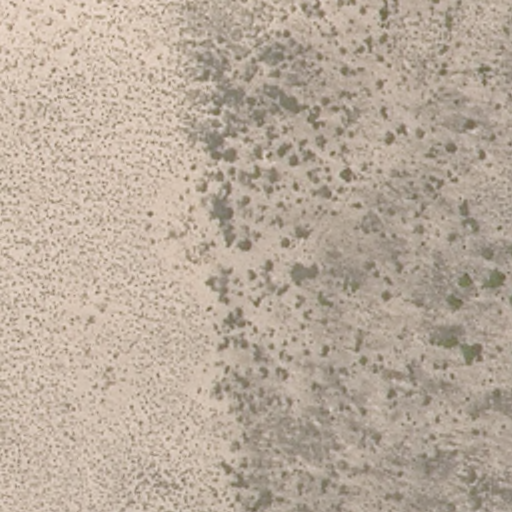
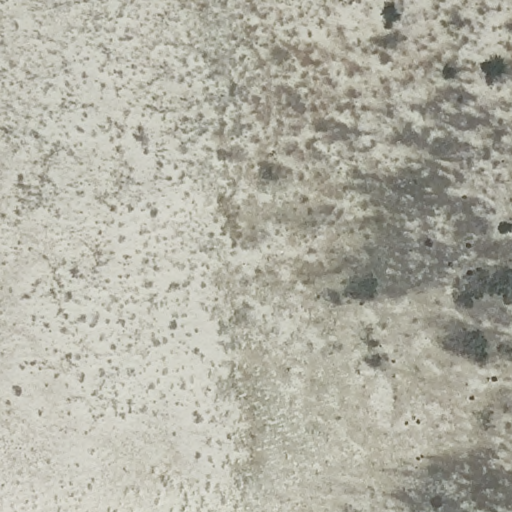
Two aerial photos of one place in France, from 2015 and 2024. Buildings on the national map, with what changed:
[]

